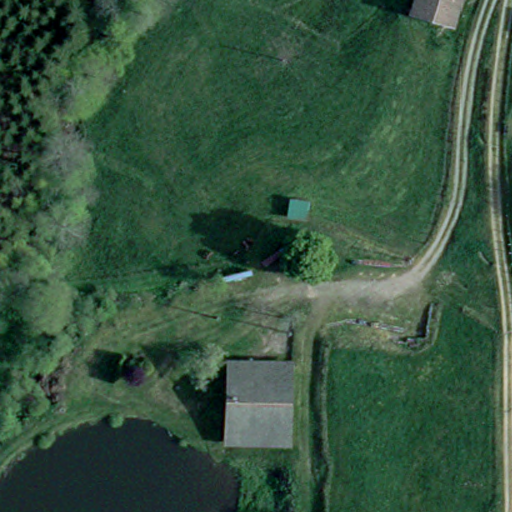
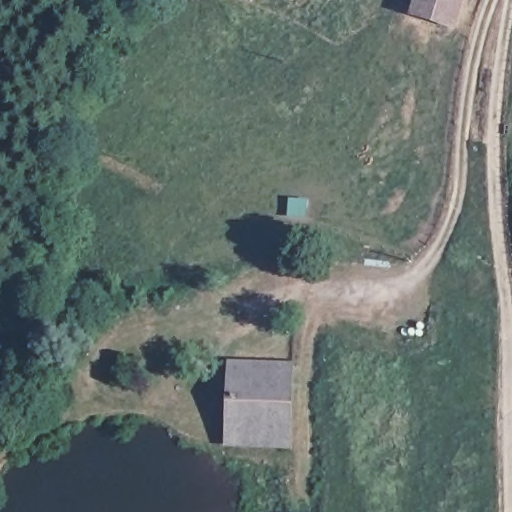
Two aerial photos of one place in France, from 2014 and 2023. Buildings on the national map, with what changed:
unchanged [(457,14),(420,8),(421,0),(459,0),(457,14)]
unchanged [(314,204),(307,232),(285,227),(293,195),(315,197),(314,204)]
unchanged [(292,370),(285,445),(235,441),(225,440),(233,363),(292,370)]

